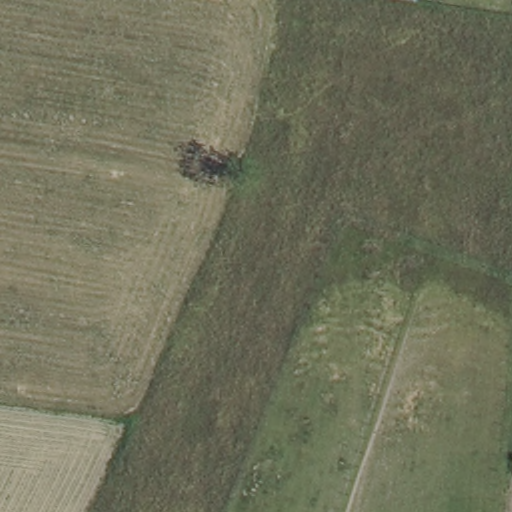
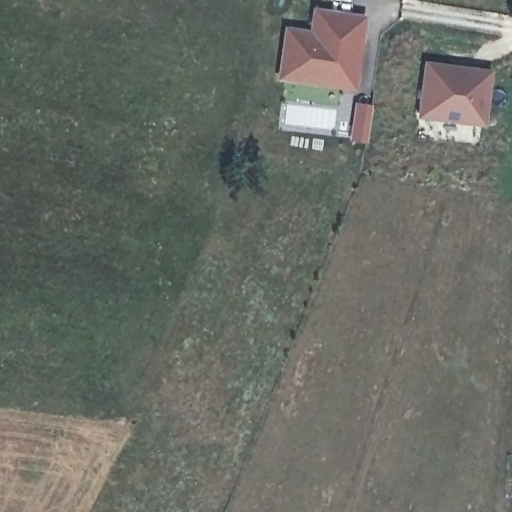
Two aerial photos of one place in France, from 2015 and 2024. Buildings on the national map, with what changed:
new [(309,25),(313,2),(365,11),(354,89),(276,77),(284,22),(309,25)]
new [(492,69),(484,126),(416,118),(423,62),(492,69)]

